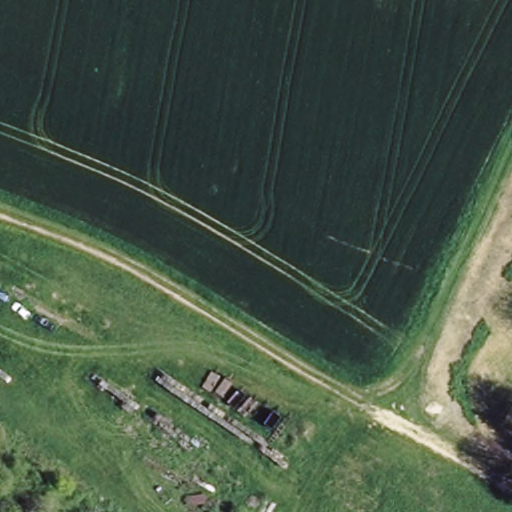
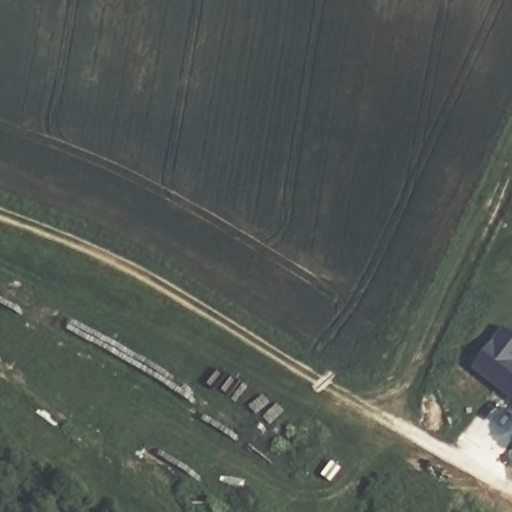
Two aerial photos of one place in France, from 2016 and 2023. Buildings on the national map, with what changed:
new [(502,326),(512,333),(512,398),(470,367),(502,326)]

